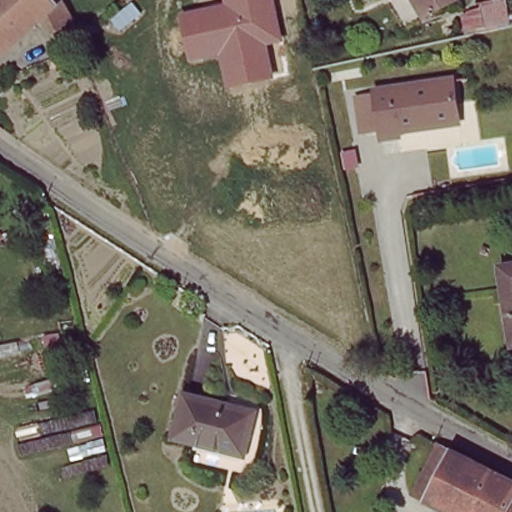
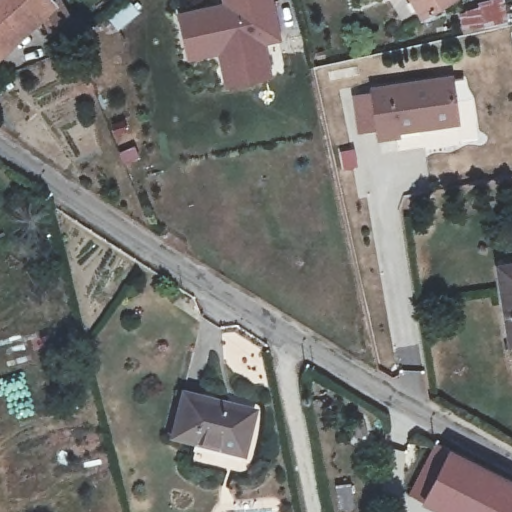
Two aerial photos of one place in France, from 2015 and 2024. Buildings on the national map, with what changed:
unchanged [(57,0),(63,11),(46,24),(27,8),(0,31),(0,0),(57,0)]
unchanged [(223,0),(275,0),(284,41),(267,44),(275,78),(225,87),(218,55),(187,61),(178,13),(223,5),(223,0)]
unchanged [(443,0),(422,16),(411,0),(443,0)]
unchanged [(475,3),(490,0),(502,0),(505,25),(462,34),(459,14),(477,10),(475,3)]
unchanged [(362,88),(382,86),(382,82),(461,75),(465,119),(386,126),(386,121),(366,123),(362,88)]
unchanged [(512,267),(512,345),(508,346),(499,268),(512,267)]
unchanged [(252,407),(241,449),(171,431),(183,388),(252,407)]
unchanged [(412,487),(433,445),(510,487),(496,512),(455,512),(412,487)]
unchanged [(512,512),(496,512),(510,487),(512,488),(512,512)]

